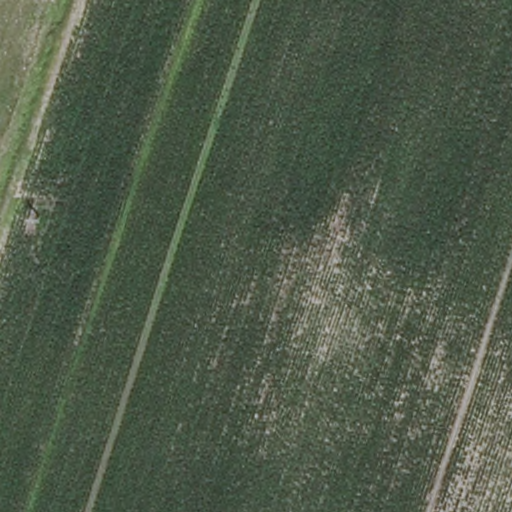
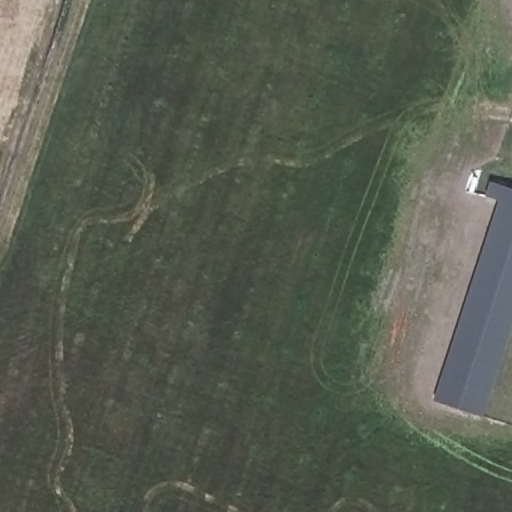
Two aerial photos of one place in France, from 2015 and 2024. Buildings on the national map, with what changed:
new [(497,203),(486,199),(492,183),(512,190),(512,333),(485,419),(435,402),(497,203)]

